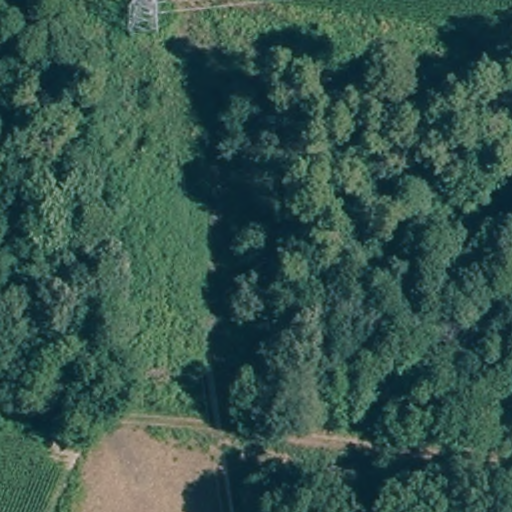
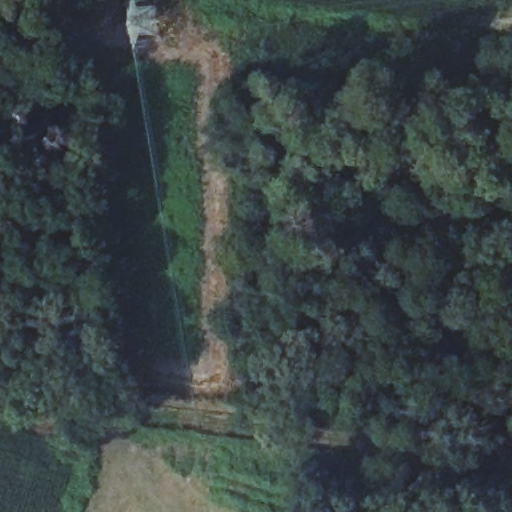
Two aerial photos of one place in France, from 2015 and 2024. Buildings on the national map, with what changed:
[]

